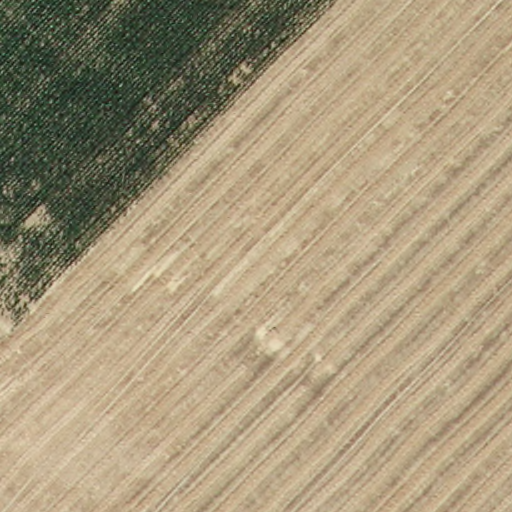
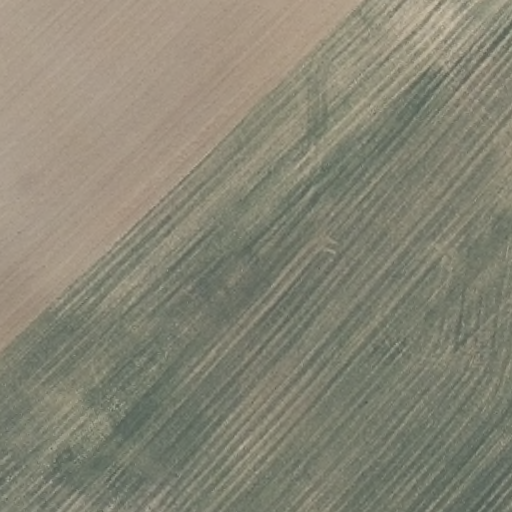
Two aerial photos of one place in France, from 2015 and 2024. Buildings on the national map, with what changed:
[]

